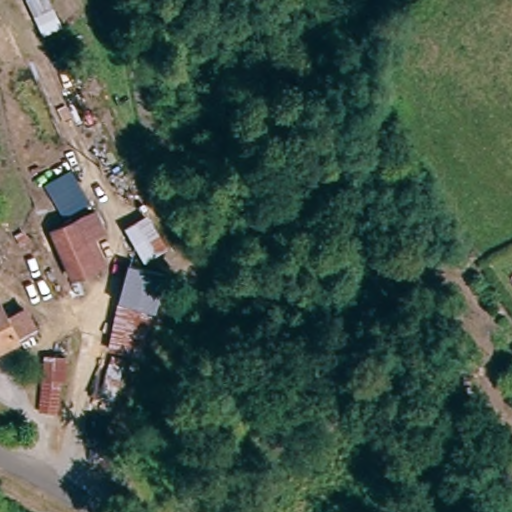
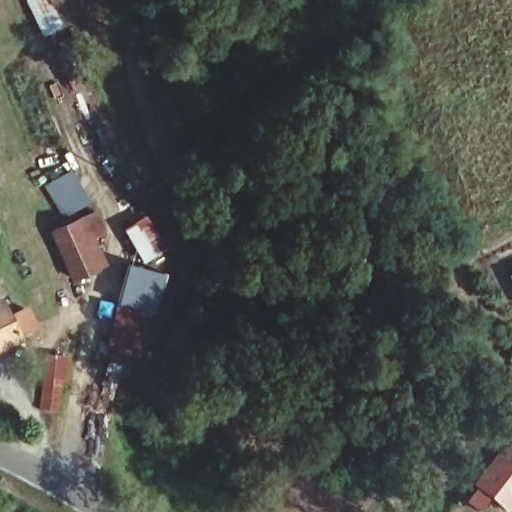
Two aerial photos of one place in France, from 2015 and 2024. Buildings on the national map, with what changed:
unchanged [(64,220),(44,189),(73,170),(93,201),(64,220)]
unchanged [(90,216),(110,261),(71,287),(48,233),(90,216)]
unchanged [(170,250),(141,266),(127,230),(148,216),(170,250)]
unchanged [(160,312),(152,312),(142,360),(110,352),(118,302),(124,303),(129,272),(162,279),(160,312)]
unchanged [(10,352),(12,356),(0,362),(0,329),(2,333),(17,325),(27,343),(10,352)]
unchanged [(66,363),(62,413),(42,412),(46,362),(66,363)]
new [(508,442),(512,445),(512,509),(510,512),(503,512),(471,487),(508,442)]

